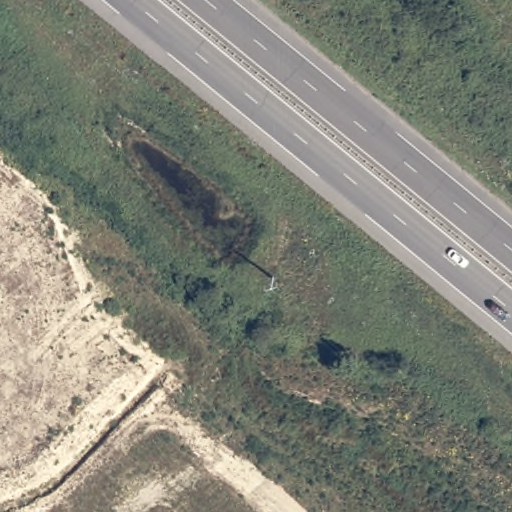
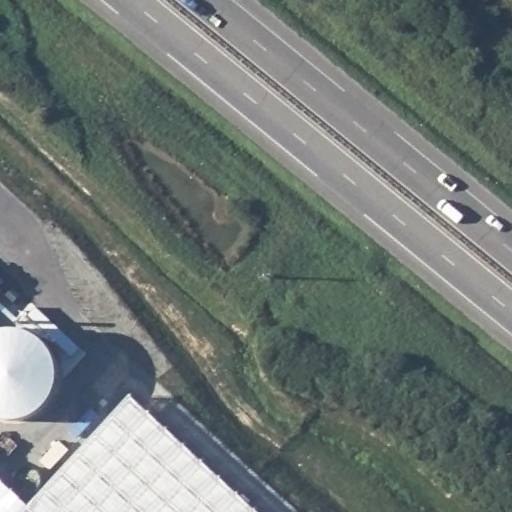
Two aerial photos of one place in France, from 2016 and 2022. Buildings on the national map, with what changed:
new [(0,294),(0,288),(3,291),(0,294)]
new [(136,395),(263,512),(0,512),(0,477),(33,508),(136,395)]

